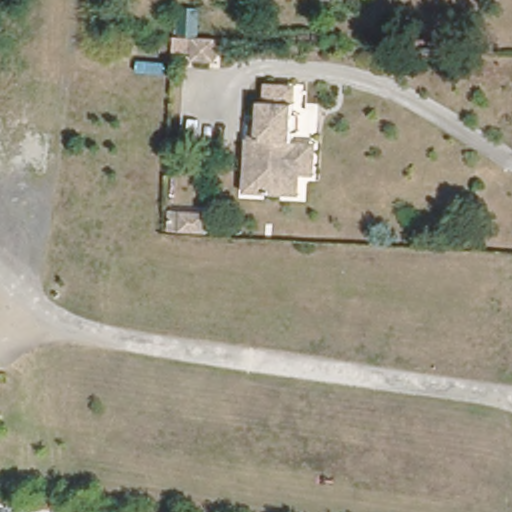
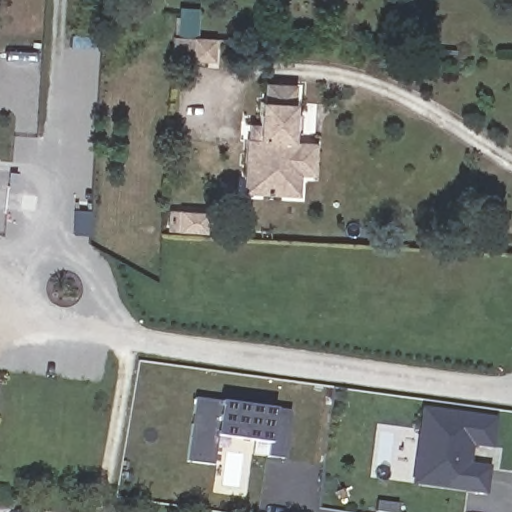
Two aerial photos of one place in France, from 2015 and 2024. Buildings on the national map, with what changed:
unchanged [(216,64),(190,62),(191,55),(174,54),(174,34),(218,37),(216,64)]
unchanged [(242,178),(245,140),(249,140),(250,121),(256,121),(259,98),(263,98),(265,82),(287,84),(296,85),(295,100),(294,113),(302,114),(301,129),(292,129),(291,140),(307,141),(317,142),(315,177),(300,176),(298,196),(288,195),(258,192),(241,191),(242,178)]
new [(166,211),(176,211),(176,210),(202,212),(201,231),(175,230),(175,228),(165,227),(166,211)]
new [(196,400),(291,413),(285,461),(267,458),(270,438),(219,430),(213,467),(187,463),(196,400)]
new [(424,437),(420,436),(425,408),(496,420),(491,448),(471,445),(468,466),(488,468),(484,494),(416,483),(420,457),(424,437)]

